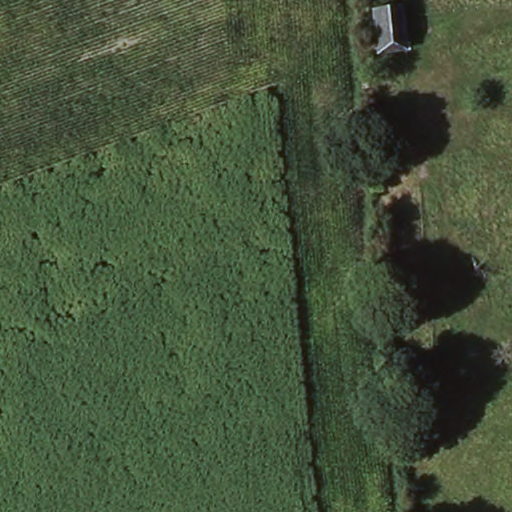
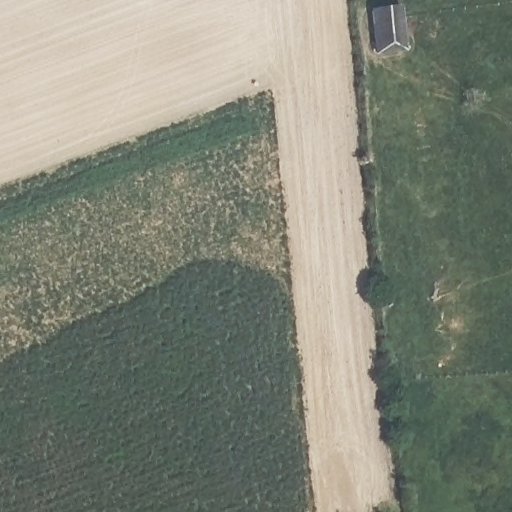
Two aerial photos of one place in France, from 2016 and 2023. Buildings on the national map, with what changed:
unchanged [(395,6),(400,50),(373,52),(368,10),(395,6)]

